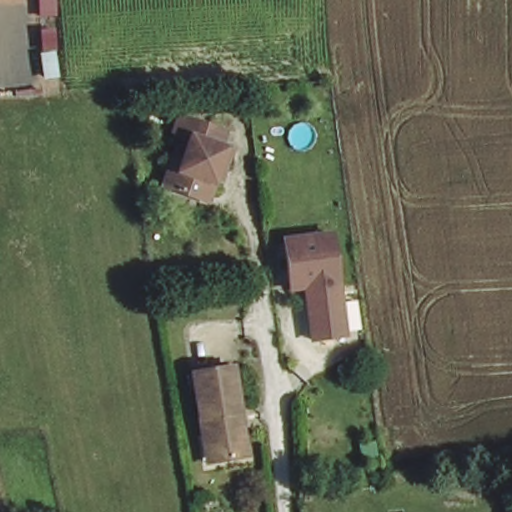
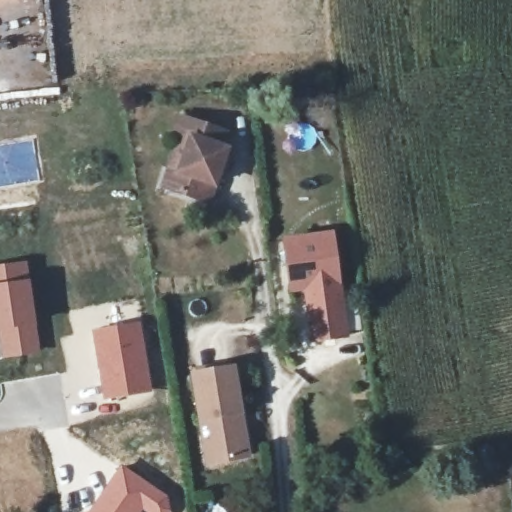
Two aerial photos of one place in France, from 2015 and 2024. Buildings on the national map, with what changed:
unchanged [(167,165),(179,134),(171,130),(178,114),(206,128),(202,138),(231,151),(226,166),(222,165),(206,205),(196,200),(171,189),(159,184),(167,165)]
unchanged [(331,236),(348,336),(314,341),(306,286),(289,288),(283,242),(331,236)]
new [(40,354),(1,360),(0,353),(0,263),(27,260),(40,354)]
new [(140,321),(152,391),(102,400),(89,330),(140,321)]
unchanged [(203,434),(192,372),(226,367),(231,366),(250,455),(243,456),(218,460),(208,462),(203,434)]
new [(91,506),(120,464),(167,495),(172,510),(170,512),(145,512),(143,511),(141,512),(85,512),(91,506)]

